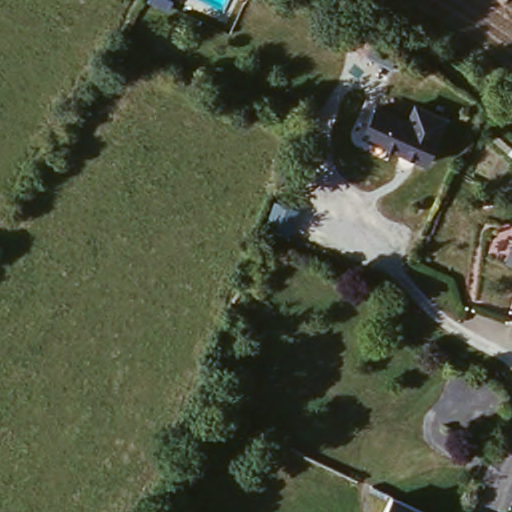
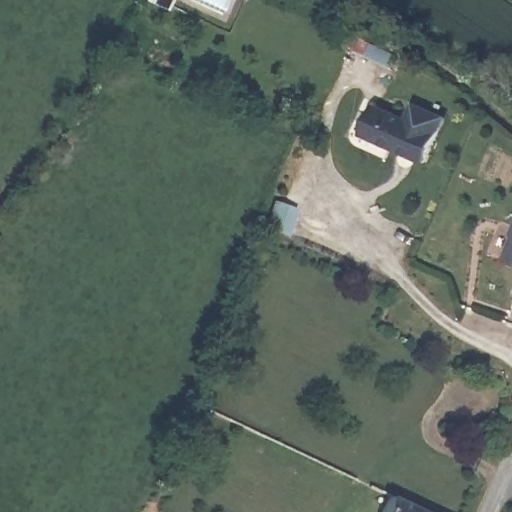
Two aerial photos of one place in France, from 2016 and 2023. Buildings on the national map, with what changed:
unchanged [(450,119),(428,163),(365,137),(380,108),(410,122),(420,106),(450,119)]
unchanged [(303,198),(293,224),(277,218),(286,192),(303,198)]
unchanged [(512,257),(512,259),(511,259),(512,257)]
unchanged [(382,512),(391,493),(432,512),(382,512)]

